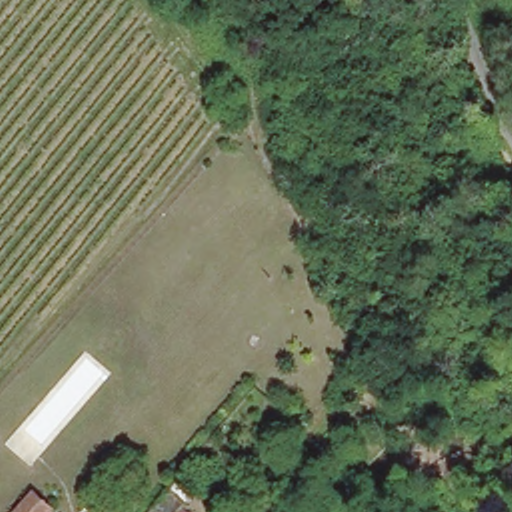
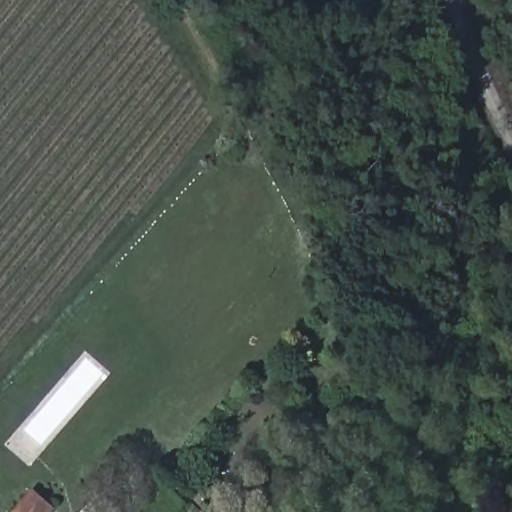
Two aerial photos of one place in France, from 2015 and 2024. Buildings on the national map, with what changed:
unchanged [(145,436),(161,451),(135,478),(119,465),(145,436)]
unchanged [(57,508),(53,512),(15,512),(36,490),(57,508)]

